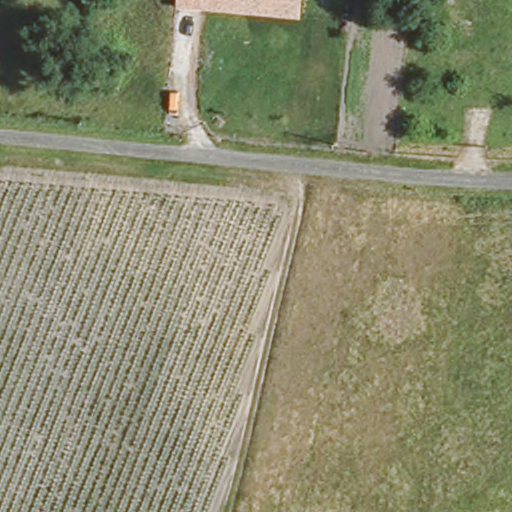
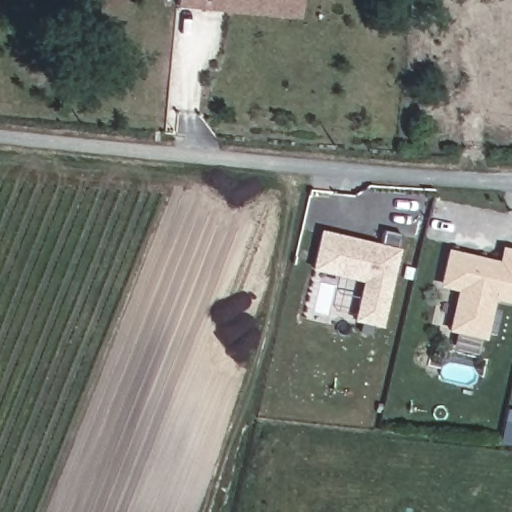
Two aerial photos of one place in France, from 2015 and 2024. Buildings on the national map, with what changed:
unchanged [(174,8),(175,0),(301,0),(299,20),(174,8)]
new [(319,229),(381,244),(383,231),(400,235),(398,250),(380,328),(351,323),(360,282),(311,271),(319,229)]
new [(455,291),(438,287),(446,250),(496,261),(499,248),(512,250),(512,303),(492,300),(484,338),(446,332),(455,291)]

